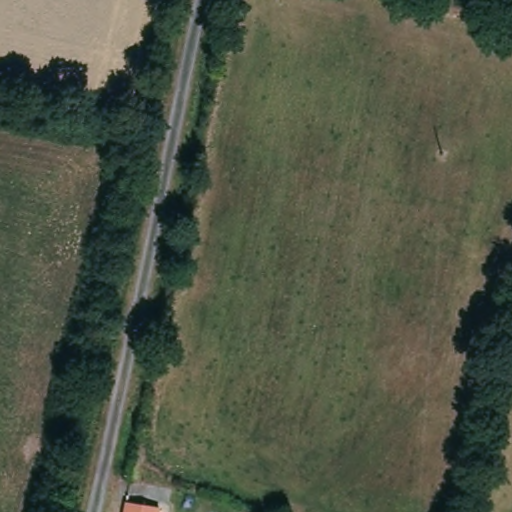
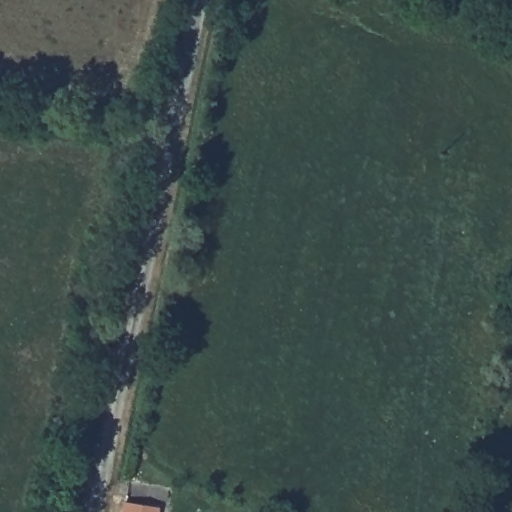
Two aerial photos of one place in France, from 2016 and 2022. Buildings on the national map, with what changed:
unchanged [(162,509),(162,512),(123,512),(125,502),(162,509)]

